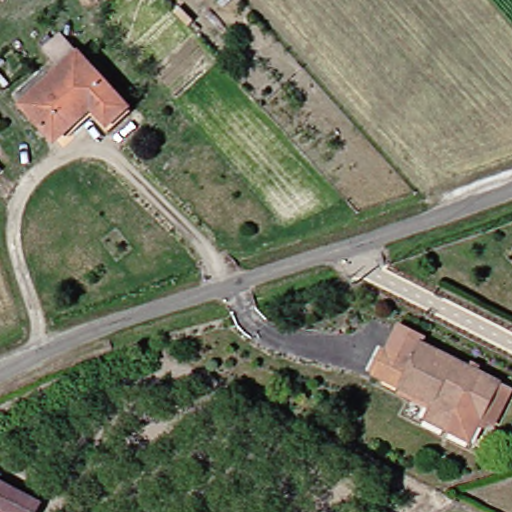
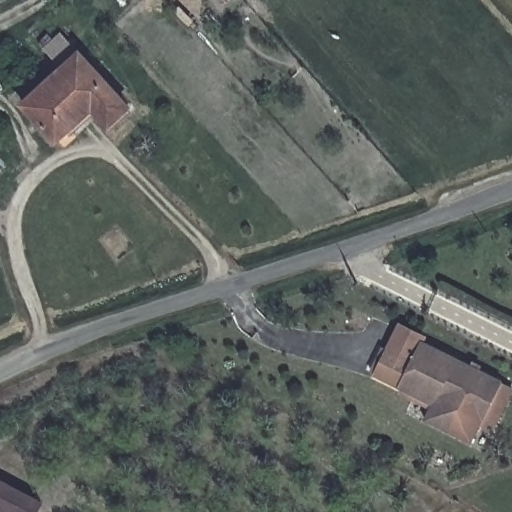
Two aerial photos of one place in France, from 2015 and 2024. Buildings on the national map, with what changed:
unchanged [(113,119),(97,100),(56,136),(23,97),(81,46),(131,103),(113,119)]
unchanged [(467,440),(425,417),(432,404),(374,372),(386,350),(404,317),(427,332),(424,336),(500,376),(467,440)]
unchanged [(467,440),(500,376),(512,382),(512,394),(484,448),(467,440)]
unchanged [(37,512),(14,512),(0,504),(0,487),(4,479),(43,500),(37,512)]

